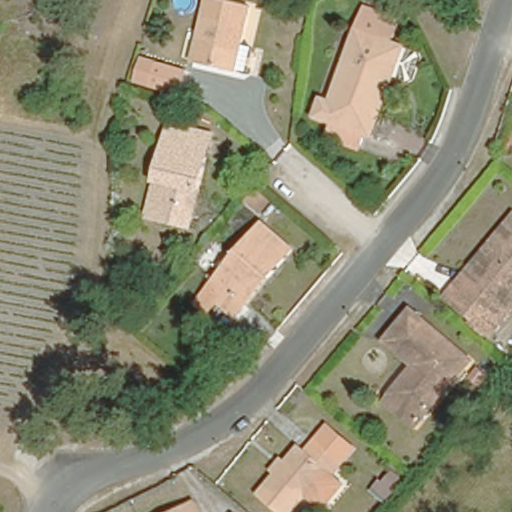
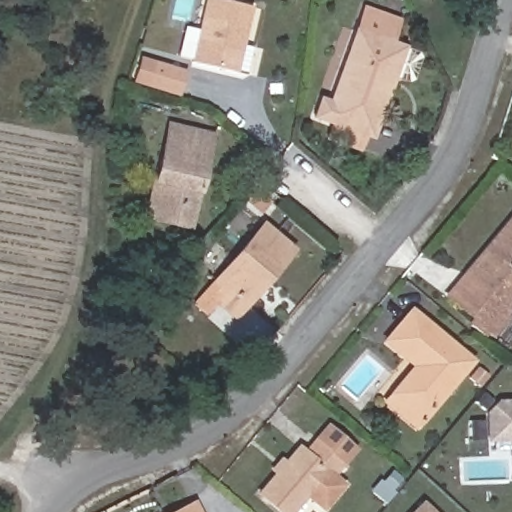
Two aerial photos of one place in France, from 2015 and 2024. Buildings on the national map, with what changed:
unchanged [(234,42),(249,45),(242,71),(184,57),(199,0),(228,0),(244,4),(234,42)]
unchanged [(321,133),(326,118),(309,112),(315,95),(326,99),(360,6),(395,18),(386,42),(413,52),(403,80),(387,75),(366,132),(359,130),(354,144),(321,133)]
unchanged [(137,54),(150,57),(172,64),(164,89),(130,79),(134,64),(137,54)]
unchanged [(167,119),(201,127),(199,132),(204,134),(182,218),(151,211),(160,174),(153,172),(167,119)]
unchanged [(481,326),(476,331),(467,325),(473,318),(445,295),(463,275),(462,270),(512,210),(512,295),(483,329),(481,326)]
unchanged [(238,306),(220,291),(206,307),(195,297),(265,218),(293,244),(267,274),(246,298),(238,306)]
unchanged [(388,393),(395,385),(412,366),(416,369),(422,361),(389,331),(412,305),(473,354),(426,410),(419,419),(388,393)]
new [(486,411),(498,398),(512,398),(512,441),(486,442),(486,411)]
unchanged [(294,445),(302,450),(311,440),(326,422),(354,444),(339,461),(327,474),(339,484),(317,510),(300,496),(287,512),(279,512),(253,491),(271,471),(280,462),(294,445)]
unchanged [(178,507),(193,500),(199,512),(168,512),(178,507)]
new [(422,500),(434,512),(410,512),(422,500)]

